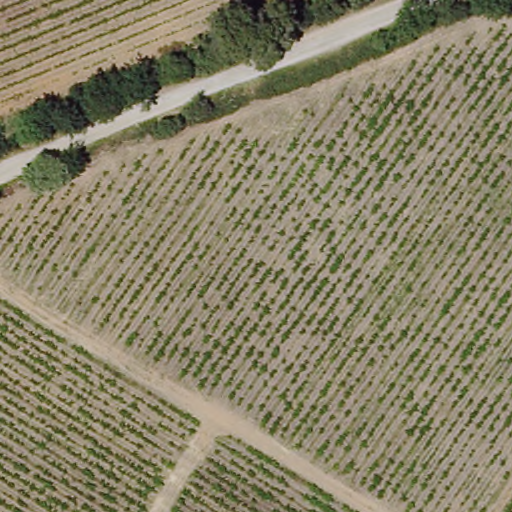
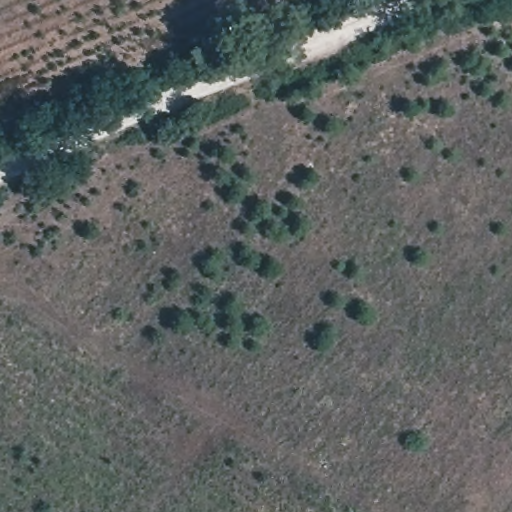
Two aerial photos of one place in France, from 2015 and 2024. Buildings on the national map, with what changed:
[]

